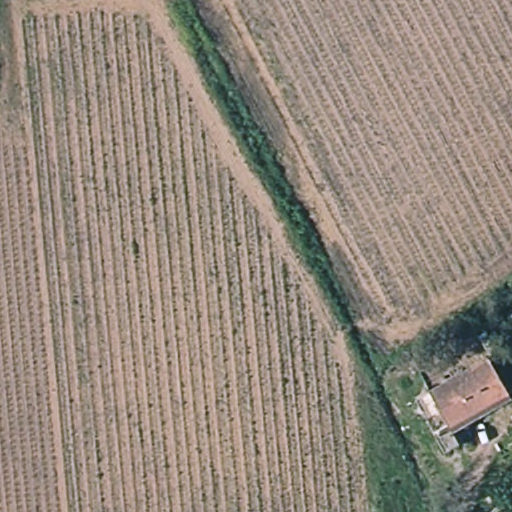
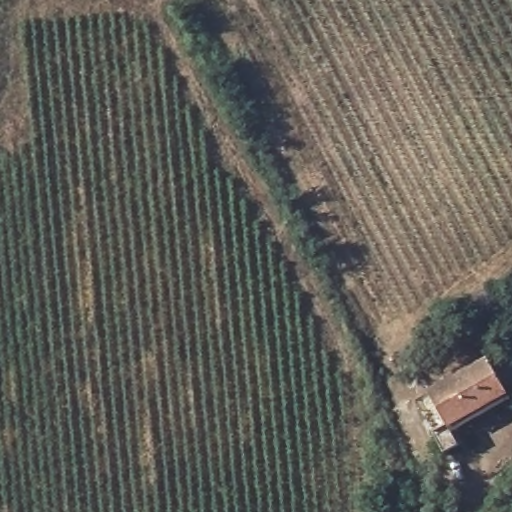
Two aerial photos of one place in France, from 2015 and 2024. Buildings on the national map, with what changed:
unchanged [(500,354),(491,359),(483,343),(493,339),(500,354)]
unchanged [(510,398),(452,429),(432,396),(490,363),(510,398)]
unchanged [(462,449),(448,458),(439,442),(454,434),(462,449)]
unchanged [(499,512),(502,509),(505,512),(499,512)]

